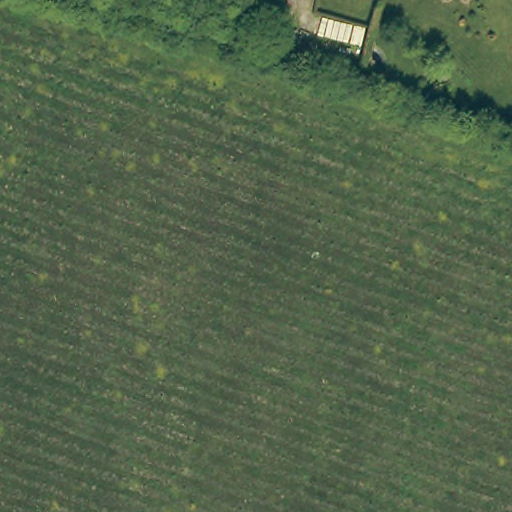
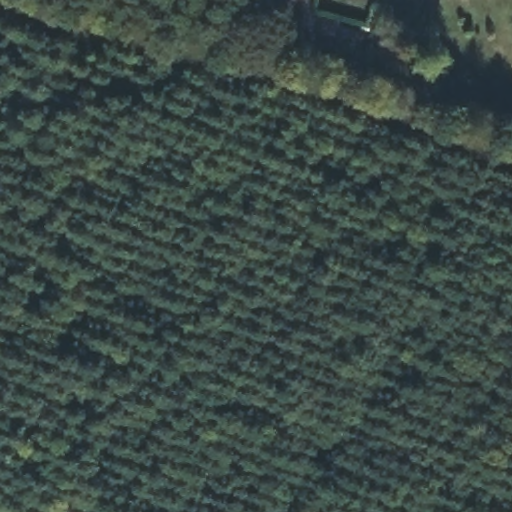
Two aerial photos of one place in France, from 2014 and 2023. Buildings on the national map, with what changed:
[]

